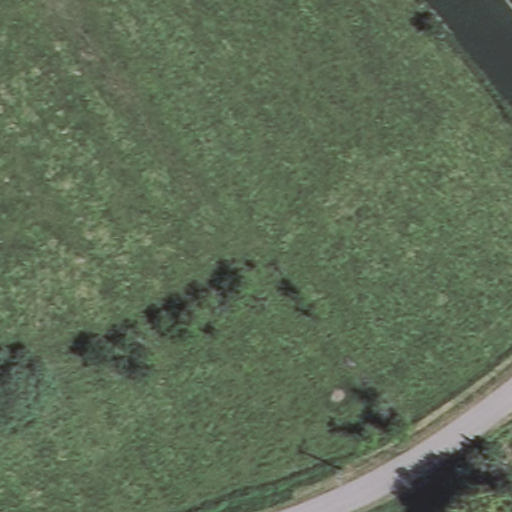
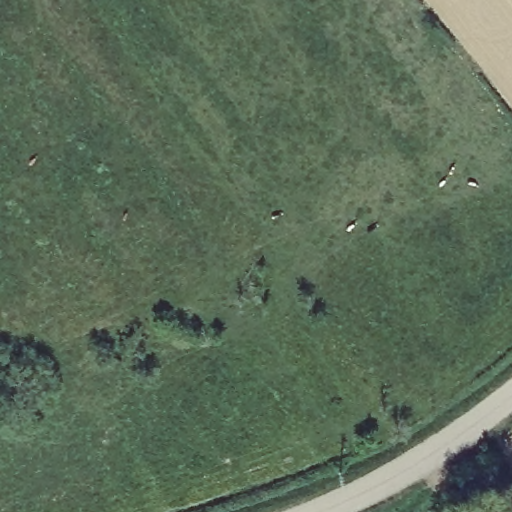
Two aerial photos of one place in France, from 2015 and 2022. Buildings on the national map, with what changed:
unchanged [(499,500),(507,512),(485,512),(499,500)]

